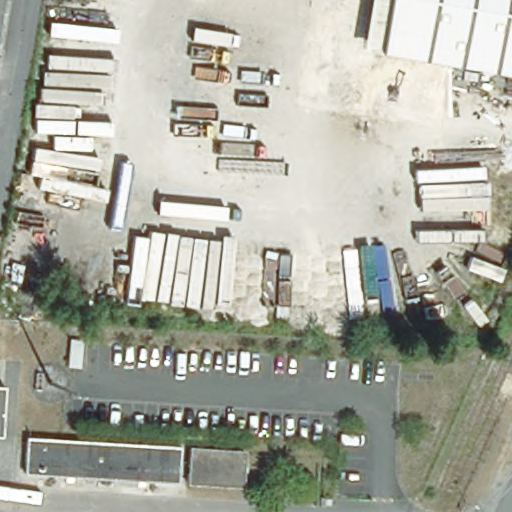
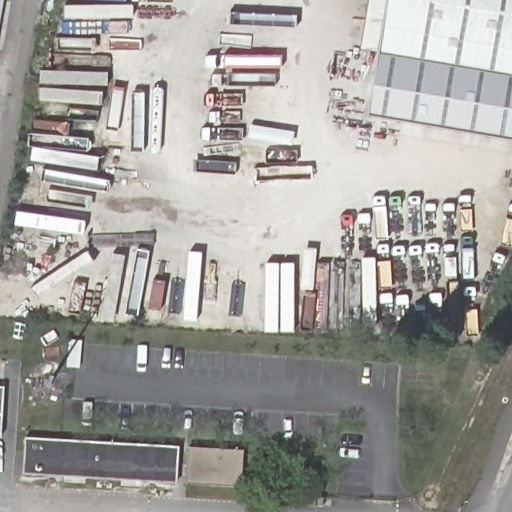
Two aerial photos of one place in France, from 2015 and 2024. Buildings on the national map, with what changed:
unchanged [(0,4),(0,0),(1,0),(0,4)]
unchanged [(369,0),(512,0),(512,77),(360,50),(369,0)]
new [(512,77),(512,142),(368,116),(379,53),(512,77)]
unchanged [(80,370),(64,369),(69,340),(84,341),(80,370)]
demolished [(57,361),(60,364),(61,366),(62,370),(62,373),(62,377),(60,381),(58,383),(54,386),(52,387),(48,387),(43,387),(39,385),(36,382),(34,379),(33,376),(32,372),(33,367),(34,365),(38,360),(42,358),(46,357),(50,357),(52,358),(54,358),(57,361)]
unchanged [(5,385),(1,433),(0,433),(0,385),(5,385)]
unchanged [(177,445),(174,479),(25,471),(27,435),(177,445)]
unchanged [(241,450),(238,482),(186,479),(188,446),(241,450)]

